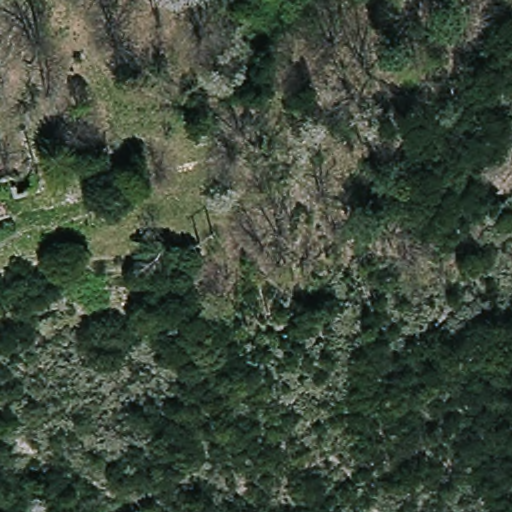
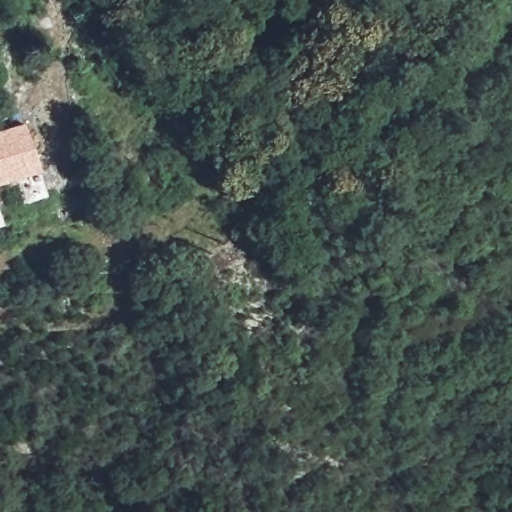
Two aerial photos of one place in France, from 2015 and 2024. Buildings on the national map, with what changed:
new [(47,195),(23,203),(14,180),(0,184),(0,130),(24,123),(39,170),(47,195)]
new [(2,224),(0,224),(0,220),(2,224)]

